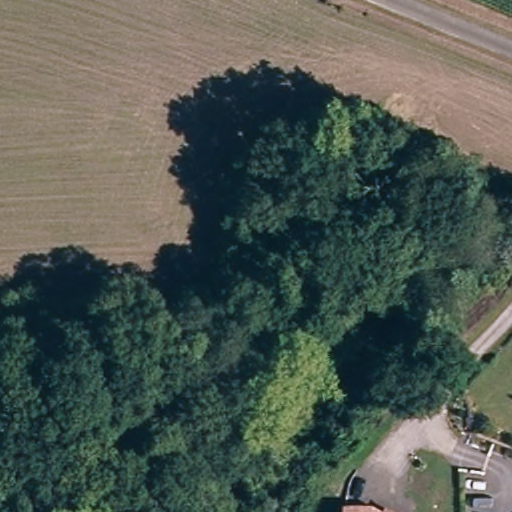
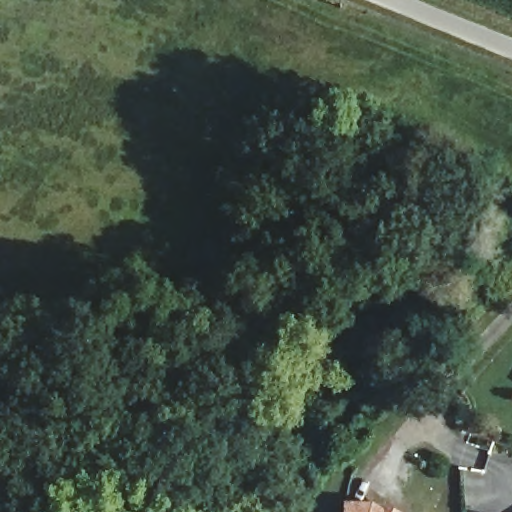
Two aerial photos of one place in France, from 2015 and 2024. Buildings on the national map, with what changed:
unchanged [(349,504),(374,503),(388,512),(391,506),(399,511),(399,512),(349,512),(349,504)]

